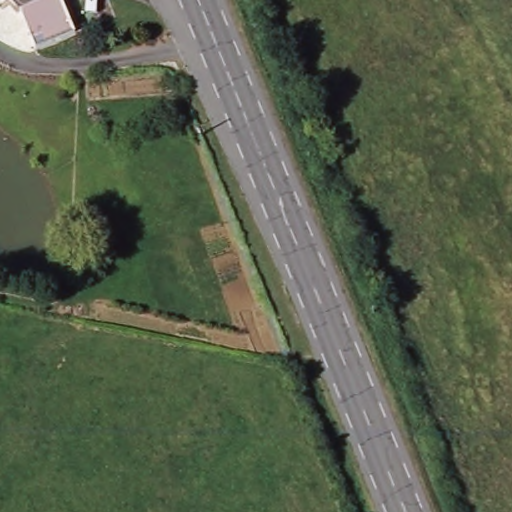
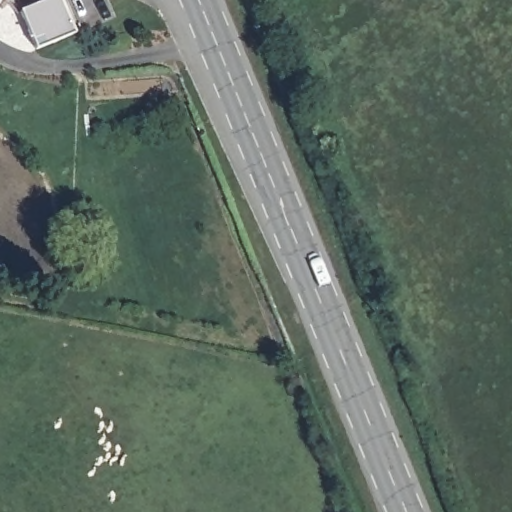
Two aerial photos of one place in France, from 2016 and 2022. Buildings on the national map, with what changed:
unchanged [(36,49),(20,11),(48,0),(62,0),(76,33),(36,49)]

